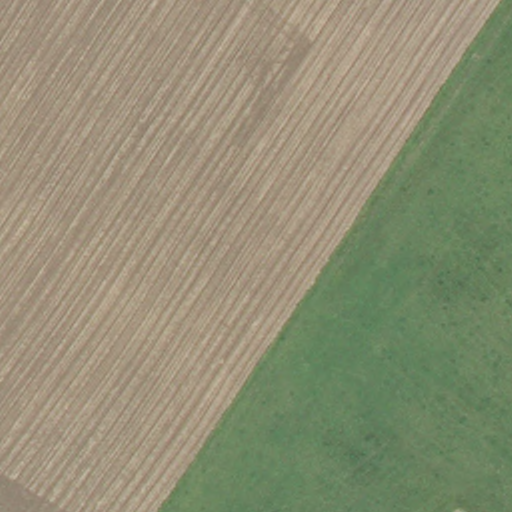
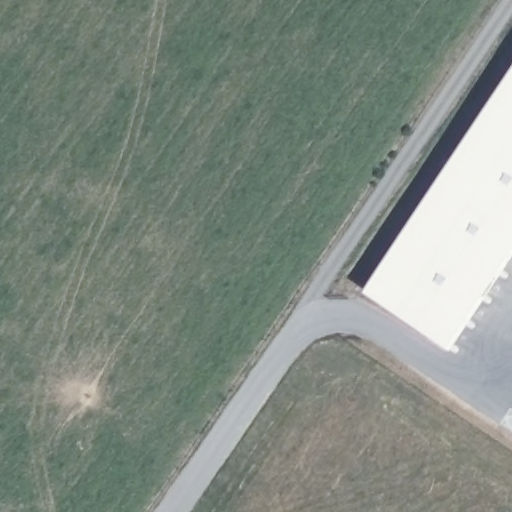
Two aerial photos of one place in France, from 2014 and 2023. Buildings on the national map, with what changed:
new [(451,347),(365,290),(512,70),(512,257),(451,347)]

